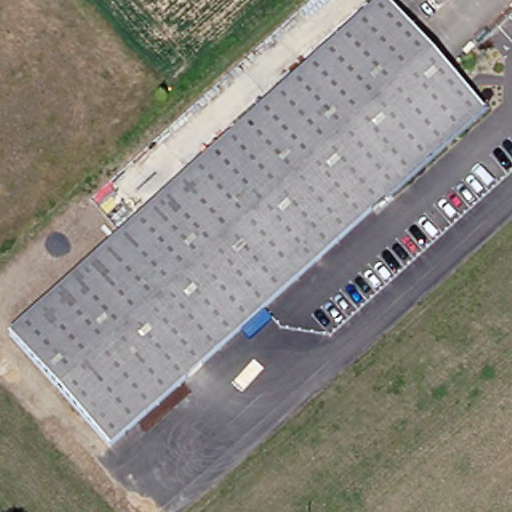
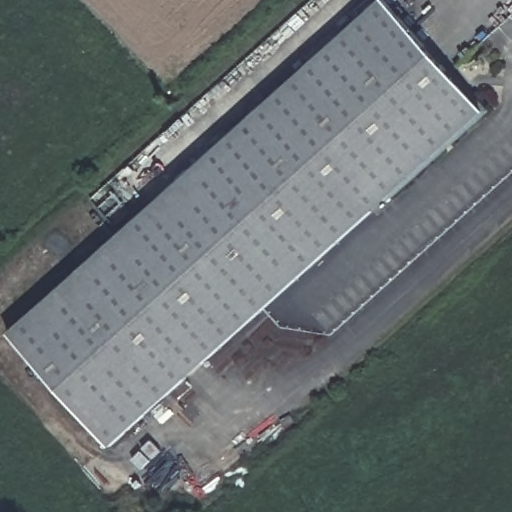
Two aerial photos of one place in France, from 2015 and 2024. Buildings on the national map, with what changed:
unchanged [(371,0),(374,0),(473,110),(99,446),(0,336),(0,334),(371,0)]

